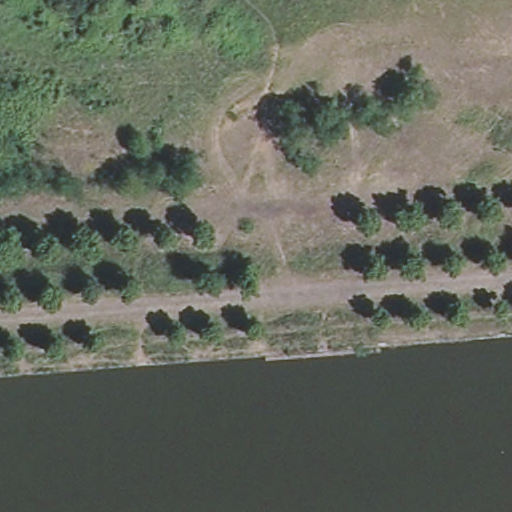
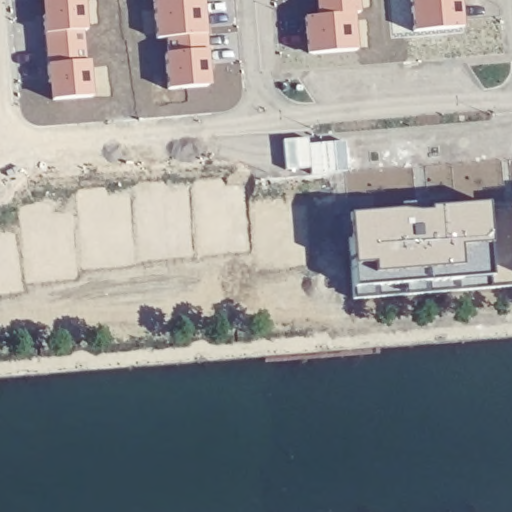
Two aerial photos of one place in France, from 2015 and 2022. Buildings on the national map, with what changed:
new [(91,28),(84,28),(87,58),(93,58),(95,94),(51,98),(43,0),(89,0),(91,28)]
new [(214,84),(169,86),(166,52),(169,52),(168,34),(157,36),(155,0),(207,0),(214,84)]
new [(362,11),(357,11),(360,48),(308,52),(307,15),(319,14),(318,0),(361,0),(362,11)]
new [(466,25),(417,28),(415,0),(464,0),(466,25)]
new [(492,201),(499,273),(500,290),(358,298),(356,211),(492,201)]

